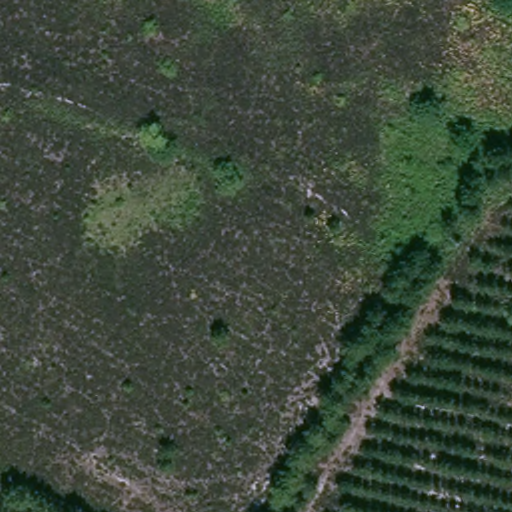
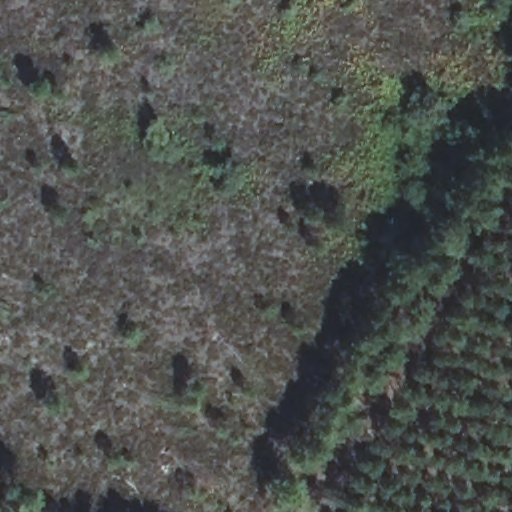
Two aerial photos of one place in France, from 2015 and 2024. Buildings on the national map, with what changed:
[]

